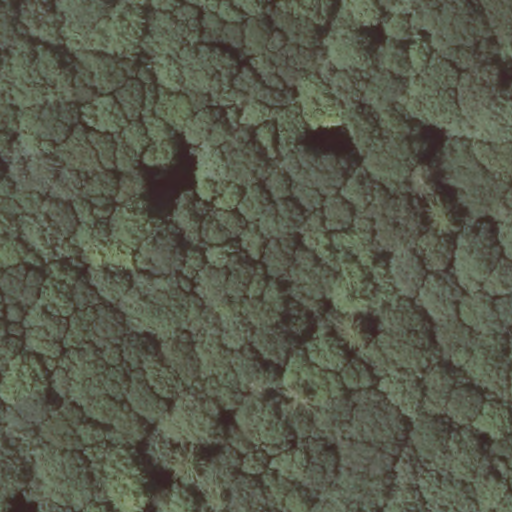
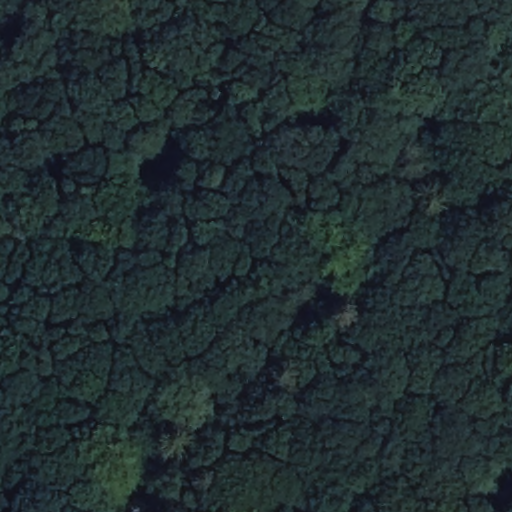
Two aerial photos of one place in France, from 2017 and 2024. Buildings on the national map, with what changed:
[]

